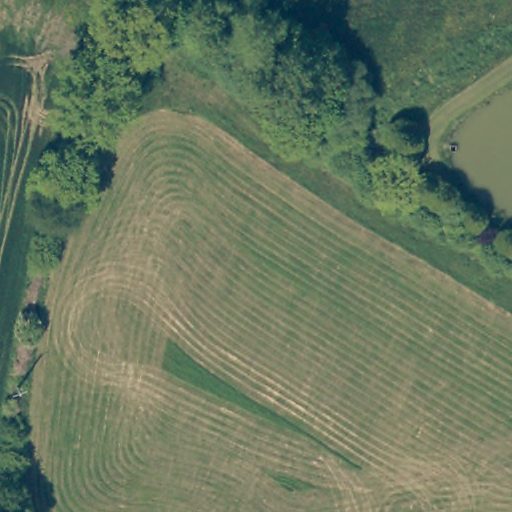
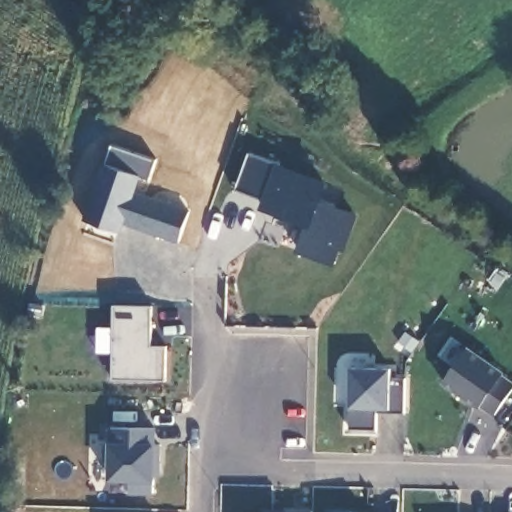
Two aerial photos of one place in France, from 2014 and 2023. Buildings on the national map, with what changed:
new [(325,182),(318,201),(355,215),(342,249),(337,247),(330,264),(297,251),(306,225),(283,217),(286,204),(267,197),(265,201),(233,190),(247,152),(280,166),(325,182)]
new [(113,305),(152,306),(151,345),(166,346),(165,381),(112,379),(113,305)]
new [(442,383),(467,347),(503,373),(501,377),(512,384),(512,389),(491,418),(476,408),(442,383)]
new [(349,430),(350,367),(390,370),(390,378),(404,378),(403,414),(376,413),(375,431),(349,430)]
new [(109,442),(109,426),(156,428),(156,443),(155,483),(151,483),(151,495),(129,495),(129,482),(106,482),(109,442)]
new [(312,510),(312,512),(262,512),(262,508),(312,510)]
new [(350,511),(350,512),(328,512),(328,511),(350,511)]

